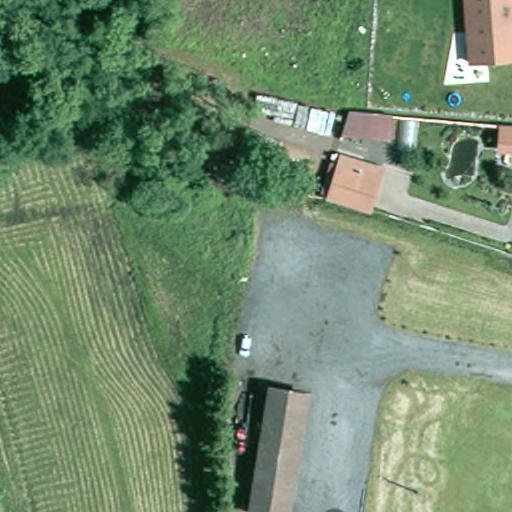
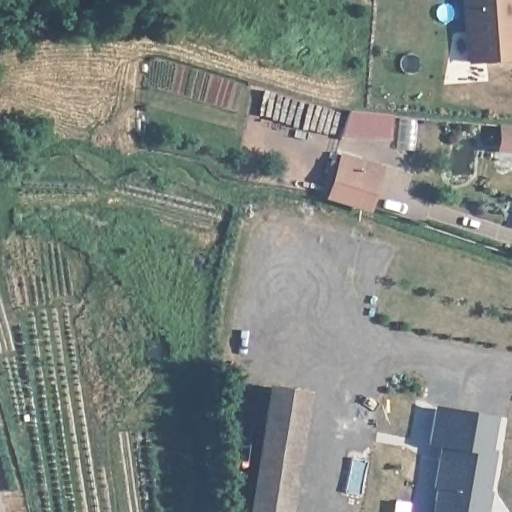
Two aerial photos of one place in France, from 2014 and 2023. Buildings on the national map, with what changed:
unchanged [(468,66),(463,0),(512,0),(512,64),(468,66)]
new [(352,115),(394,118),(392,144),(350,140),(352,115)]
unchanged [(350,182),(357,162),(377,168),(366,201),(344,195),(350,182)]
unchanged [(311,400),(291,512),(255,512),(275,394),(311,400)]
new [(430,512),(440,445),(428,442),(434,404),(497,415),(491,450),(495,451),(489,490),(491,491),(488,509),(489,512),(430,512)]

